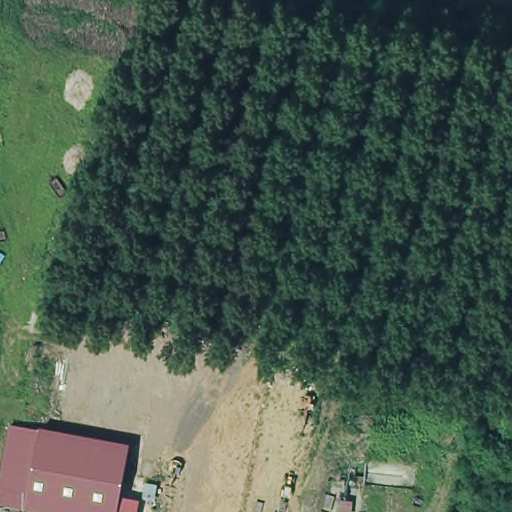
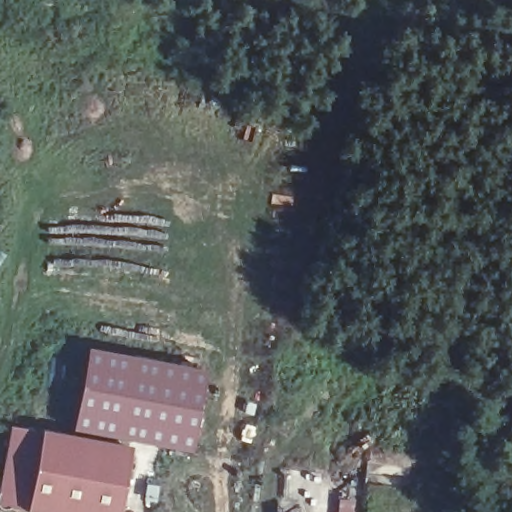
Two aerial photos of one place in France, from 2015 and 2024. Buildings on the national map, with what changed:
new [(85,352),(203,376),(187,456),(68,432),(85,352)]
unchanged [(109,512),(41,512),(0,504),(0,436),(3,422),(122,446),(109,512)]

